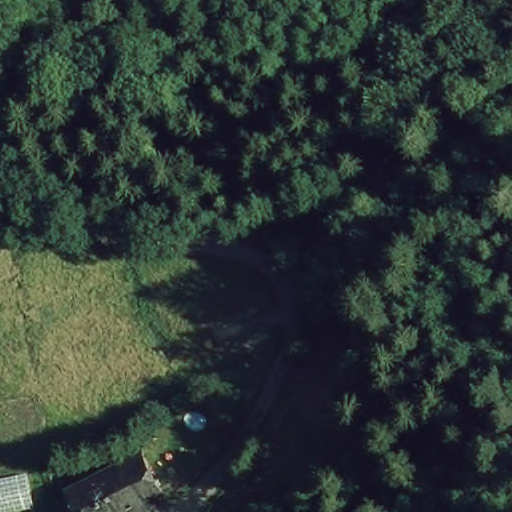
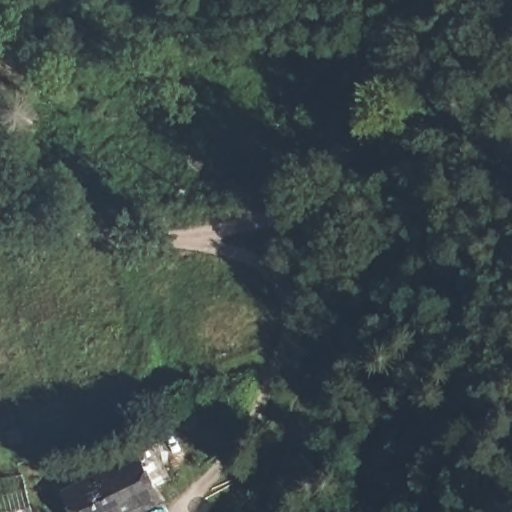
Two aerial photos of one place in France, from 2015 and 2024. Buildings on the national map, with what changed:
unchanged [(141,439),(171,501),(152,512),(67,512),(51,486),(141,439)]

